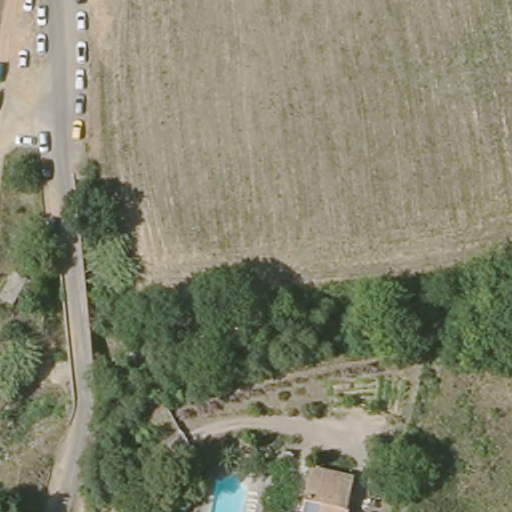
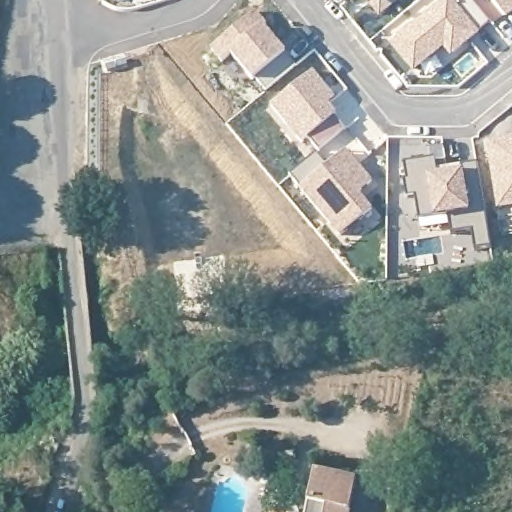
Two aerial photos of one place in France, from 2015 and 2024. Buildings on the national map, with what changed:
new [(390,7),(378,17),(364,0),(382,0),(390,7)]
new [(441,0),(456,0),(482,30),(450,60),(442,51),(412,75),(388,46),(441,0)]
new [(504,17),(489,0),(512,0),(512,12),(504,17)]
new [(262,92),(254,84),(230,59),(222,64),(211,49),(255,11),(287,57),(292,66),(262,92)]
new [(316,153),(307,141),(300,147),(268,109),(313,71),(331,91),(335,96),(337,98),(334,102),(332,106),(337,115),(347,129),(316,153)]
new [(512,139),(512,209),(496,212),(486,142),(507,140),(512,139)]
new [(326,165),(347,147),(359,164),(372,181),(360,194),(374,210),(340,237),(299,188),(326,165)]
new [(491,249),(474,251),(471,233),(453,234),(451,217),(420,221),(415,194),(409,195),(406,164),(434,159),(437,174),(462,170),(470,216),(484,215),(491,249)]
unchanged [(27,283),(15,307),(1,298),(15,275),(27,283)]
unchanged [(255,463),(242,455),(247,447),(260,454),(255,463)]
unchanged [(361,475),(354,512),(311,512),(321,466),(361,475)]

